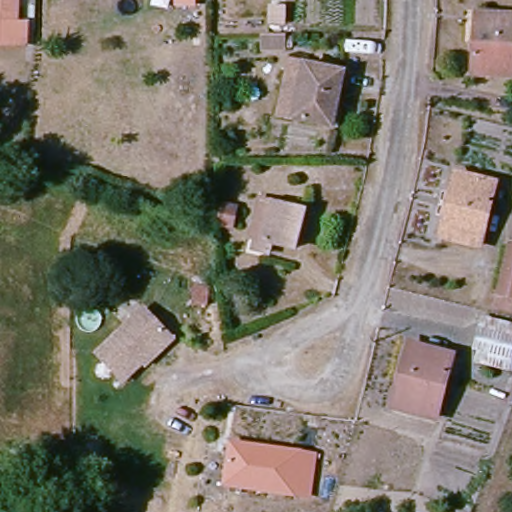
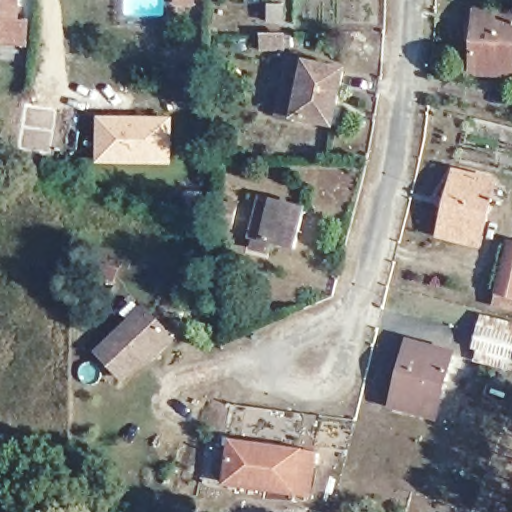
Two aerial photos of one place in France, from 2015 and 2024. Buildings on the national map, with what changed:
demolished [(0,15),(0,0),(10,0),(11,15),(0,15)]
new [(21,0),(20,21),(32,22),(30,46),(0,45),(0,0),(21,0)]
unchanged [(485,27),(486,20),(510,18),(511,9),(512,9),(512,41),(509,41),(508,76),(470,78),(473,27),(485,27)]
demolished [(23,30),(23,46),(0,47),(0,30),(23,30)]
unchanged [(333,73),(319,130),(279,120),(294,63),(333,73)]
new [(95,116),(173,117),(172,166),(95,165),(95,116)]
unchanged [(489,179),(473,245),(434,236),(450,173),(489,179)]
unchanged [(298,212),(287,250),(267,244),(263,255),(245,252),(250,237),(258,240),(265,216),(253,213),(258,198),(298,212)]
unchanged [(239,223),(234,237),(220,234),(224,219),(239,223)]
unchanged [(512,305),(493,302),(505,242),(512,243),(512,305)]
unchanged [(143,360),(140,358),(122,380),(93,356),(132,307),(162,330),(165,333),(143,360)]
unchanged [(512,337),(504,376),(492,375),(494,367),(479,364),(482,355),(477,354),(484,317),(512,323),(512,337)]
unchanged [(450,356),(438,415),(396,407),(409,346),(450,356)]
unchanged [(310,501),(220,484),(229,439),(298,453),(298,459),(316,463),(310,501)]

